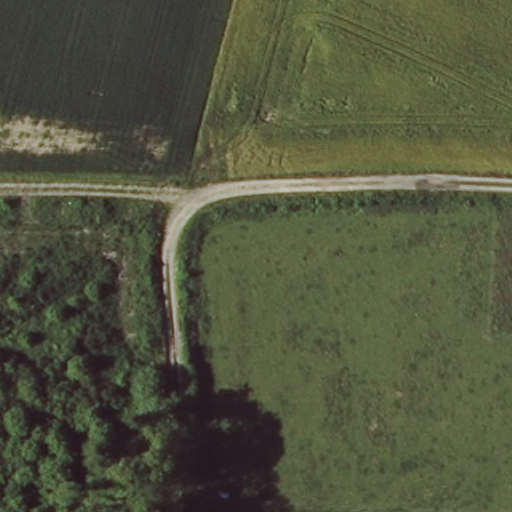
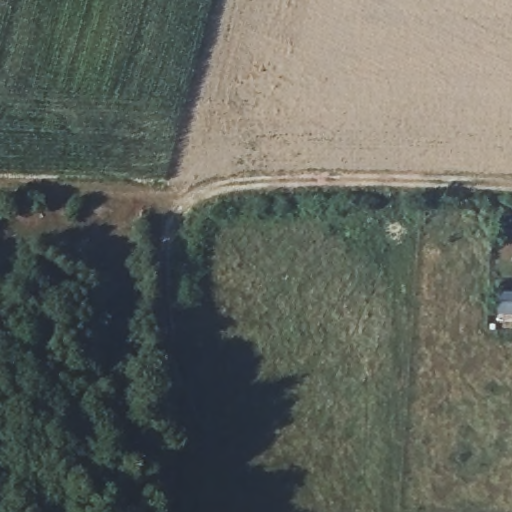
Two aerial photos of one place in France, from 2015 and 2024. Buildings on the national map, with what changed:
[]

